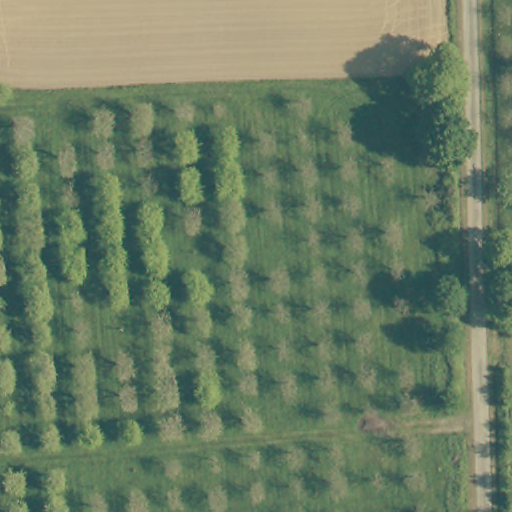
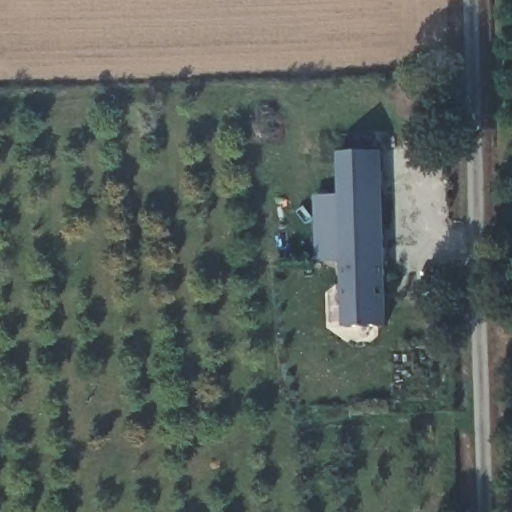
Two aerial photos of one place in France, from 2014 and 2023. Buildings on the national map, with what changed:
new [(383,151),(390,327),(346,326),(342,261),(318,262),(316,197),(341,196),(339,152),(383,151)]

